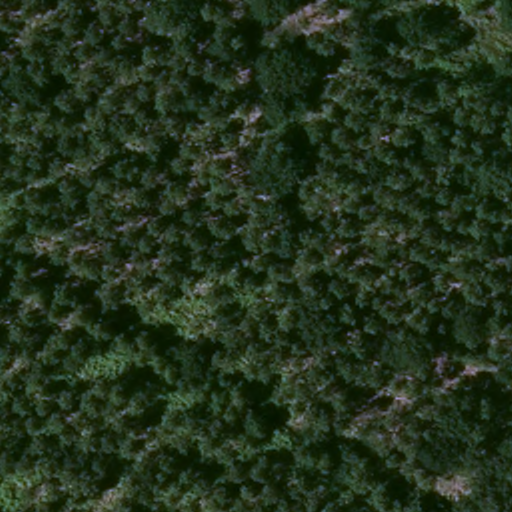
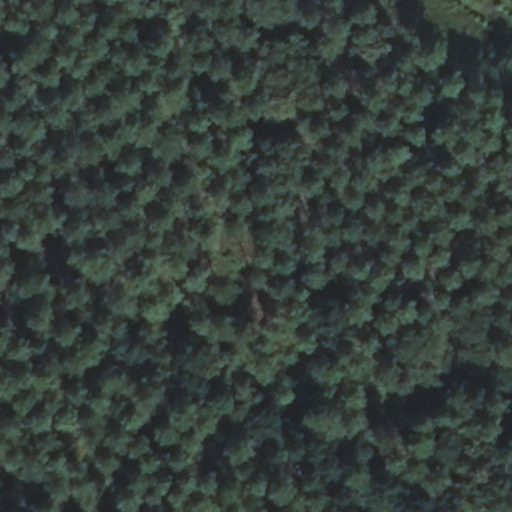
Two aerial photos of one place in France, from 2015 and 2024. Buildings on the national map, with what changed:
unchanged [(180,505),(142,493),(150,466),(187,478),(180,505)]

